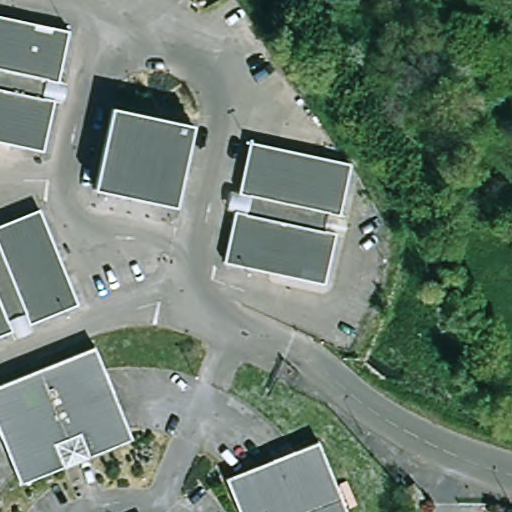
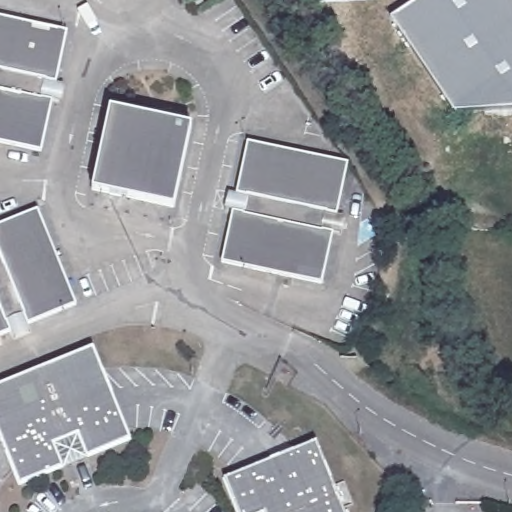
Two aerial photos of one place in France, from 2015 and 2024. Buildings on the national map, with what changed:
new [(453,113),(390,18),(417,0),(512,0),(512,110),(453,113)]
unchanged [(64,99),(54,97),(46,147),(0,140),(0,19),(64,28),(57,77),(67,79),(64,99)]
unchanged [(108,107),(186,120),(173,204),(94,191),(108,107)]
unchanged [(347,230),(337,228),(329,278),(230,261),(238,212),(228,210),(232,191),(241,192),(250,143),(348,159),(340,209),(350,210),(347,230)]
unchanged [(18,337),(14,328),(0,334),(0,226),(41,209),(79,302),(33,321),(36,330),(18,337)]
unchanged [(129,442),(87,458),(78,436),(56,444),(65,467),(18,486),(0,440),(0,385),(92,348),(129,442)]
unchanged [(316,441),(345,512),(238,512),(225,479),(316,441)]
unchanged [(402,493),(412,485),(425,503),(414,511),(402,493)]

